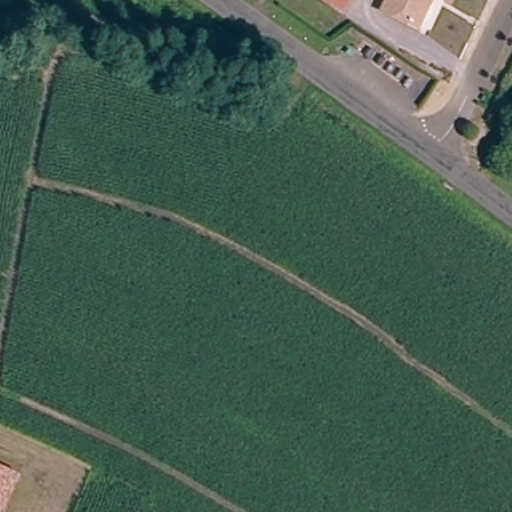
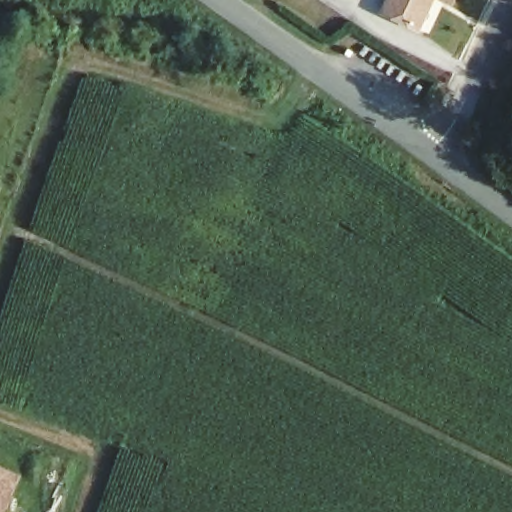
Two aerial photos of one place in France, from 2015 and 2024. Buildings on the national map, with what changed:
unchanged [(387,0),(428,0),(418,21),(384,7),(387,0)]
unchanged [(5,512),(0,512),(0,455),(1,453),(28,465),(5,512)]

